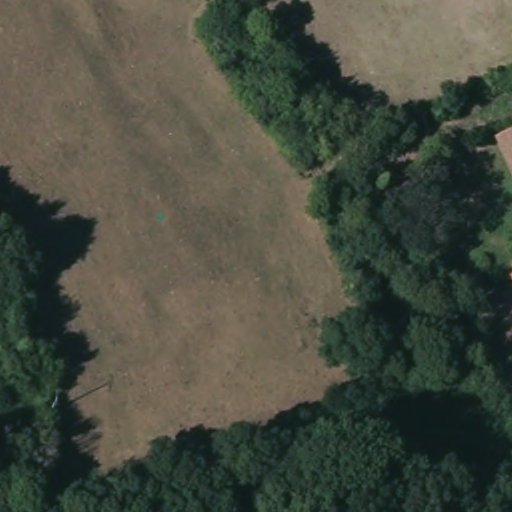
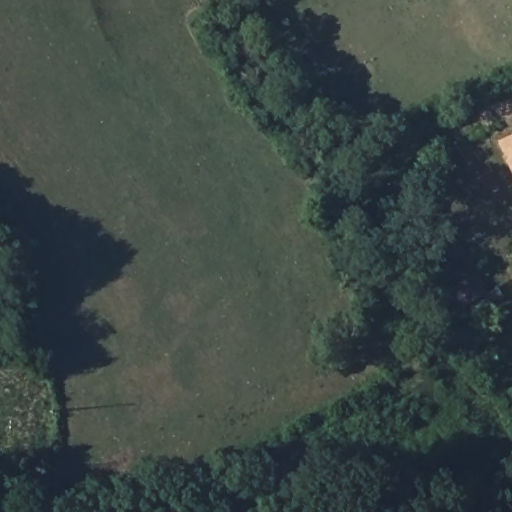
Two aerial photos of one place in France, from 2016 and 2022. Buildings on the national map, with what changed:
unchanged [(512,172),(495,137),(512,129),(512,172)]
unchanged [(512,277),(512,280),(510,278),(512,277)]

